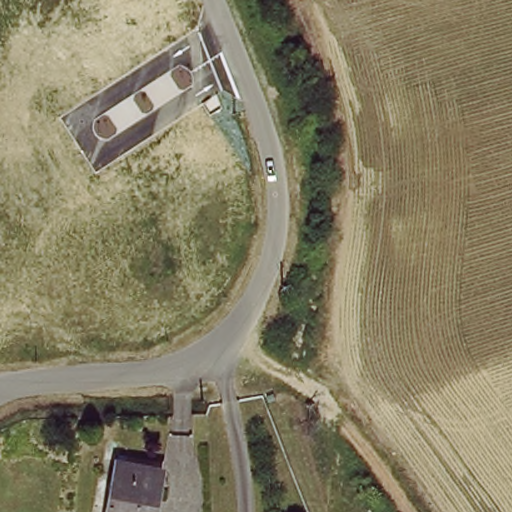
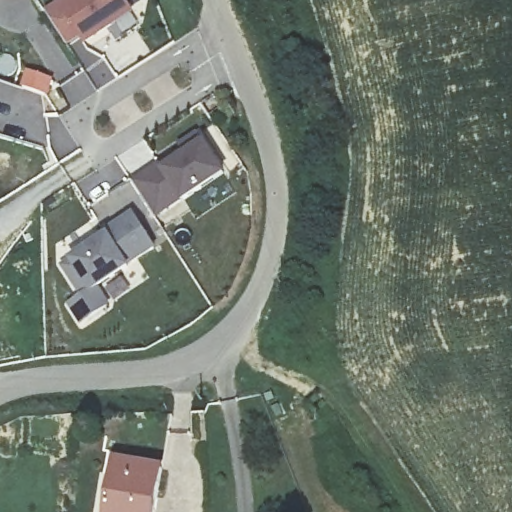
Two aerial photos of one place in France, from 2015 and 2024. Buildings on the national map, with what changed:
new [(79,37),(68,45),(46,11),(63,0),(126,0),(135,13),(84,45),(79,37)]
new [(180,151),(177,146),(199,134),(205,143),(227,175),(181,203),(155,218),(132,180),(180,151)]
new [(158,251),(130,269),(99,290),(110,308),(81,325),(68,305),(88,293),(68,260),(108,235),(105,233),(134,214),(158,251)]
unchanged [(163,466),(160,512),(109,512),(113,462),(163,466)]

